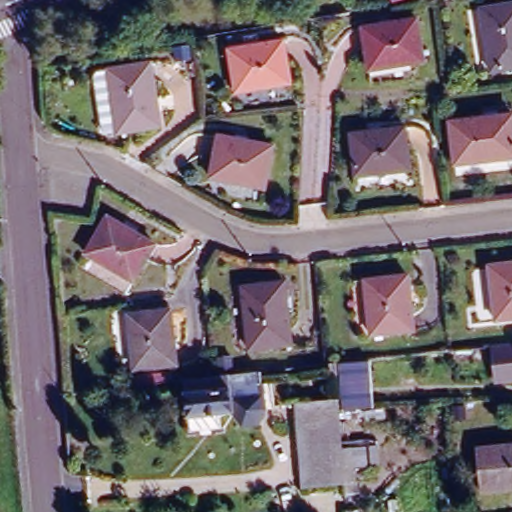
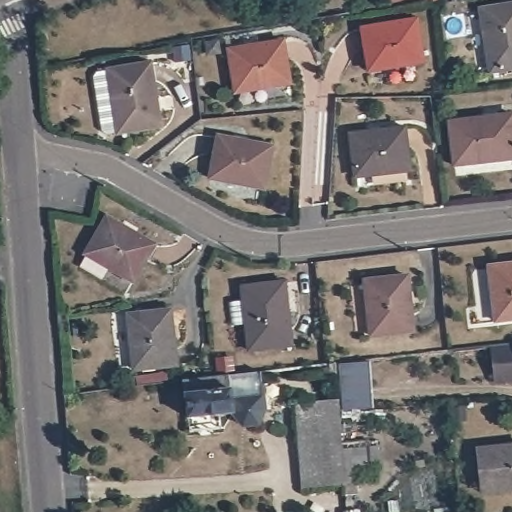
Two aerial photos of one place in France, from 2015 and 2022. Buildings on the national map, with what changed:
unchanged [(480,11),(512,6),(512,69),(488,72),(480,11)]
unchanged [(422,60),(365,70),(358,28),(415,19),(422,60)]
unchanged [(291,87),(235,96),(229,54),(243,52),(242,45),(258,42),(260,50),(285,46),(291,87)]
unchanged [(101,120),(97,80),(102,72),(113,71),(157,66),(163,119),(120,124),(108,126),(101,120)]
unchanged [(450,122),(512,116),(512,160),(455,165),(450,122)]
unchanged [(410,171),(353,177),(350,131),(405,126),(410,171)]
unchanged [(264,190),(210,179),(218,135),(273,146),(264,190)]
unchanged [(135,286),(86,257),(108,220),(155,249),(135,286)]
unchanged [(488,268),(512,265),(512,323),(493,325),(488,268)]
unchanged [(411,330),(368,335),(362,279),(405,274),(411,330)]
unchanged [(288,339),(246,342),(240,287),(283,282),(288,339)]
unchanged [(178,367),(135,371),(128,318),(173,313),(178,367)]
unchanged [(490,344),(491,343),(512,342),(512,379),(493,381),(490,344)]
unchanged [(340,412),(337,412),(336,401),(335,390),(335,380),(328,367),(336,366),(341,365),(365,362),(366,377),(370,409),(352,411),(340,412)]
unchanged [(211,376),(260,370),(263,398),(232,403),(233,412),(188,418),(182,380),(211,376)]
unchanged [(342,486),(302,488),(295,405),(336,401),(337,412),(342,486)]
unchanged [(512,446),(512,489),(482,492),(478,450),(512,446)]

